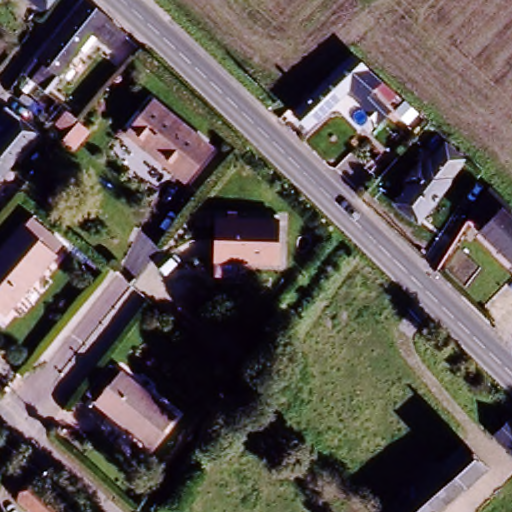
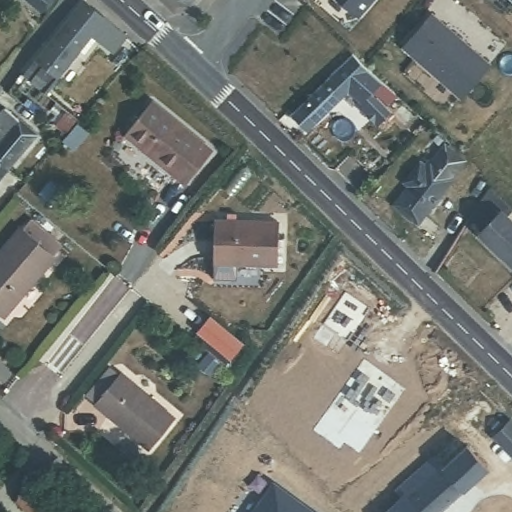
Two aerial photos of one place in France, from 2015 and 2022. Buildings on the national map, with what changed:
unchanged [(30,0),(37,0),(35,4),(30,0)]
new [(340,0),(367,0),(355,13),(340,0)]
unchanged [(21,78),(80,3),(105,21),(127,40),(115,55),(96,41),(85,56),(81,53),(46,98),(21,78)]
new [(430,13),(486,62),(457,94),(400,45),(430,13)]
unchanged [(346,74),(336,86),(343,93),(306,134),(291,120),(329,79),(327,76),(336,66),(346,74)]
unchanged [(151,108),(210,160),(182,193),(123,139),(151,108)]
unchanged [(0,169),(0,168),(0,111),(29,134),(0,169)]
unchanged [(75,120),(65,133),(55,124),(65,112),(75,120)]
unchanged [(406,182),(423,163),(428,167),(433,162),(435,164),(449,149),(466,164),(453,180),(455,183),(420,224),(397,204),(411,187),(406,182)]
unchanged [(476,238),(478,235),(468,225),(490,195),(510,216),(505,222),(512,230),(512,273),(476,238)]
unchanged [(209,220),(277,225),(275,267),(206,264),(209,220)]
unchanged [(0,244),(11,230),(13,232),(21,222),(53,248),(44,258),(45,259),(0,314),(0,244)]
new [(211,319),(242,344),(231,357),(200,332),(211,319)]
unchanged [(168,415),(143,447),(89,403),(114,372),(168,415)]
unchanged [(502,436),(508,431),(503,425),(512,417),(512,446),(502,436)]
unchanged [(487,468),(435,512),(381,512),(398,497),(390,487),(428,454),(437,464),(463,442),(487,468)]
unchanged [(13,503),(30,483),(62,512),(23,512),(13,503)]
new [(274,484),(312,512),(254,512),(274,484)]

